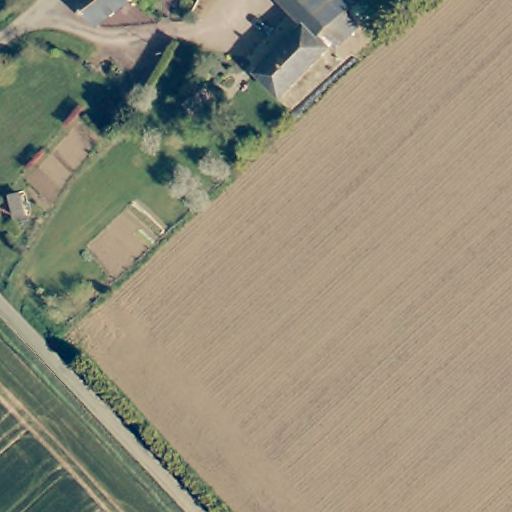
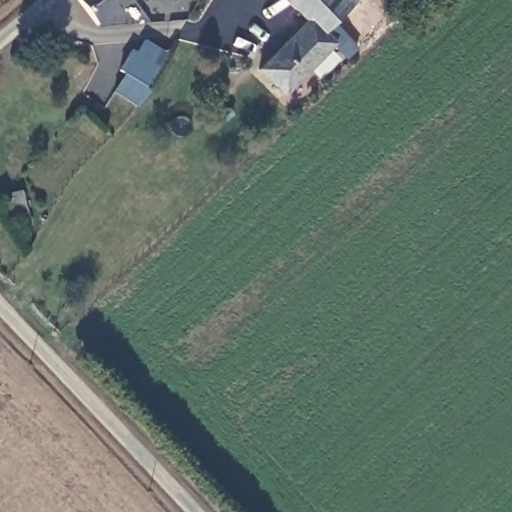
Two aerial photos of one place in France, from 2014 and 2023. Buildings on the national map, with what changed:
unchanged [(79,0),(132,0),(97,24),(79,0)]
unchanged [(360,24),(335,50),(331,47),(283,96),(259,70),(306,22),(285,0),(358,0),(347,10),(360,24)]
new [(125,73),(120,69),(132,49),(137,51),(144,39),(167,53),(146,86),(150,89),(137,107),(114,91),(125,73)]

